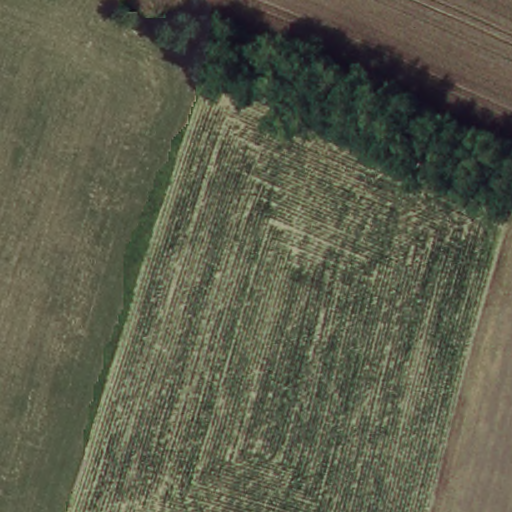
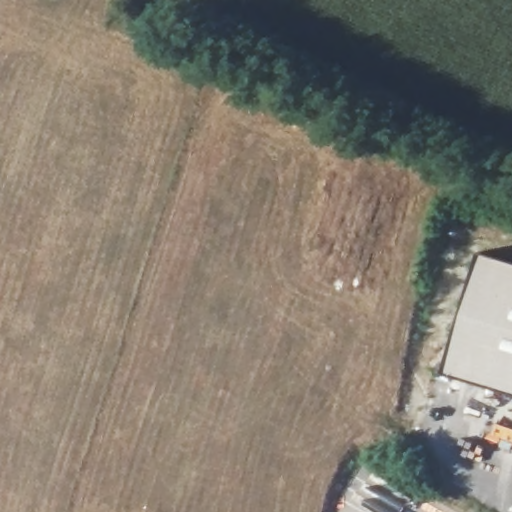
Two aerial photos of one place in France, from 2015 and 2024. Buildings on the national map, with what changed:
new [(512,264),(512,395),(438,372),(474,253),(512,264)]

